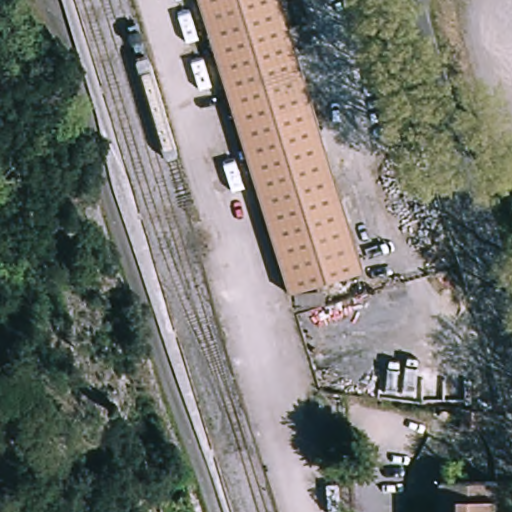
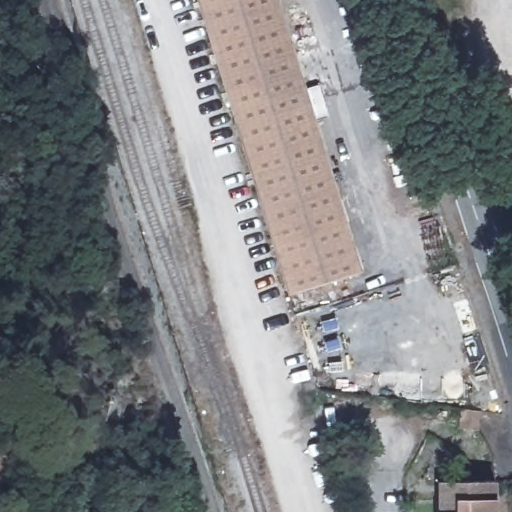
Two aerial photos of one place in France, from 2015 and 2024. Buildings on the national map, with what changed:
unchanged [(255,192),(247,163),(217,57),(200,0),(281,0),(363,273),(285,297),(255,192)]
unchanged [(459,409),(456,424),(440,421),(444,406),(459,409)]
unchanged [(436,512),(437,484),(494,485),(494,512),(436,512)]

